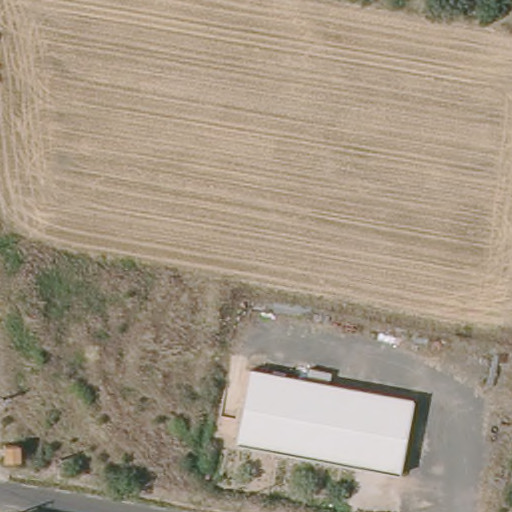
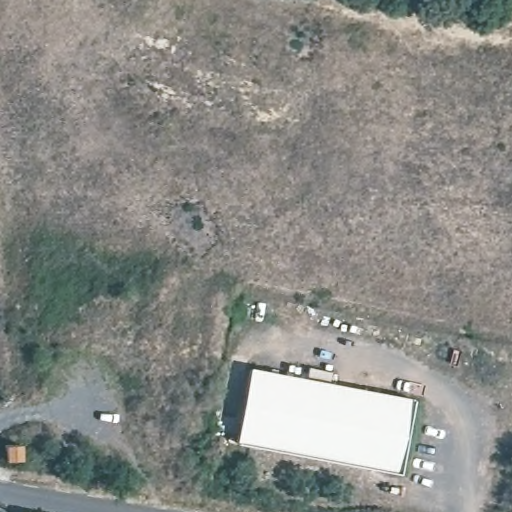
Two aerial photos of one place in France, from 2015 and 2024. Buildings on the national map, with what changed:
unchanged [(413,395),(400,468),(241,439),(254,366),(413,395)]

